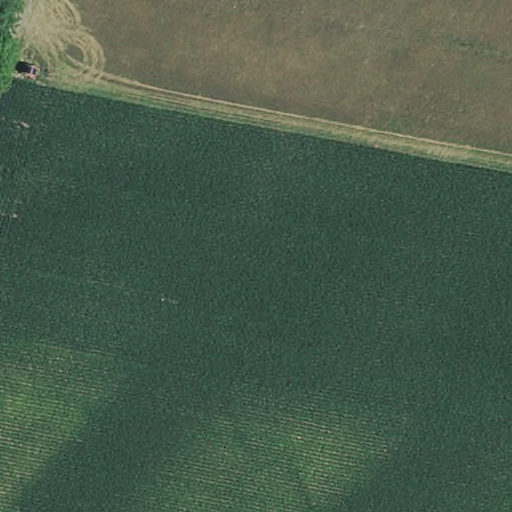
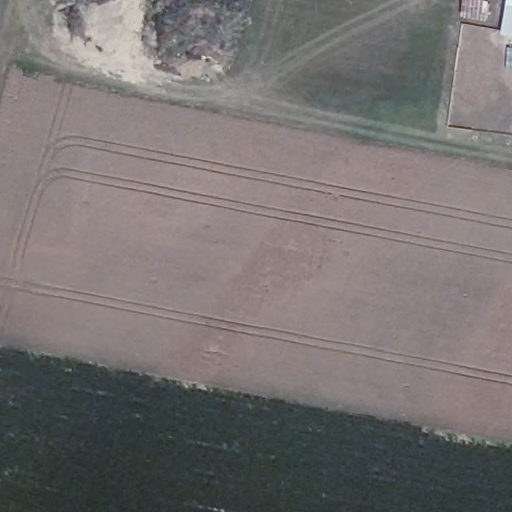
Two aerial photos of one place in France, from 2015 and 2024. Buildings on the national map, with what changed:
new [(500,32),(502,15),(509,15),(511,0),(512,0),(512,34),(500,32)]

